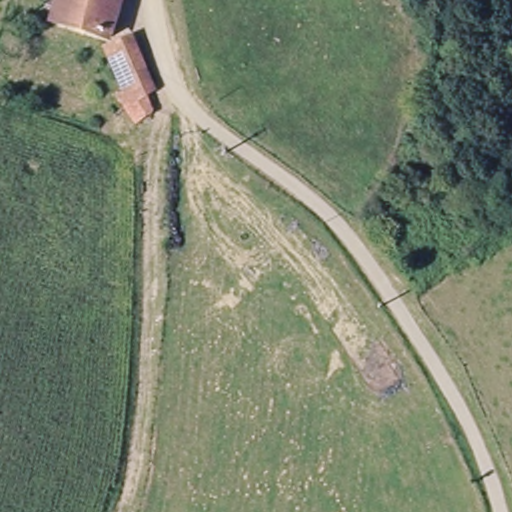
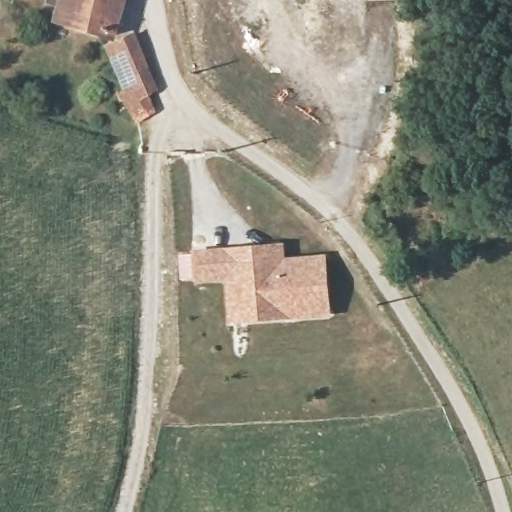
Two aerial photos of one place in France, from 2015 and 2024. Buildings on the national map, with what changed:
unchanged [(55,0),(121,0),(108,38),(50,15),(55,0)]
unchanged [(151,78),(159,93),(155,95),(130,110),(123,93),(126,91),(116,67),(107,44),(122,36),(134,61),(144,81),(151,78)]
demolished [(196,165),(185,158),(198,139),(207,146),(196,165)]
new [(321,259),(326,312),(284,316),(281,288),(256,290),(258,305),(230,309),(227,276),(196,280),(181,282),(179,257),(194,256),(225,253),(246,251),(278,248),(279,258),(280,263),(321,259)]
new [(258,305),(256,290),(281,288),(284,316),(232,321),(230,309),(258,305)]

